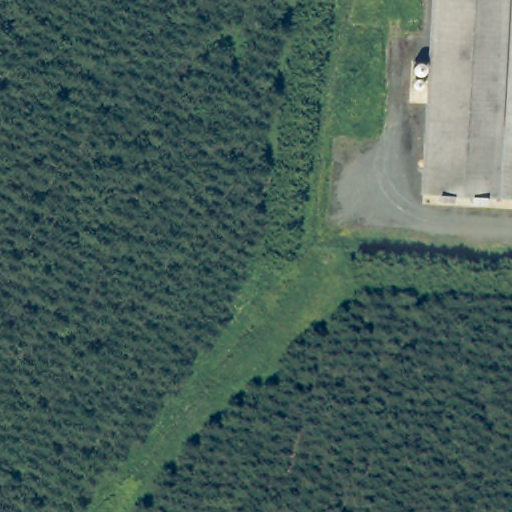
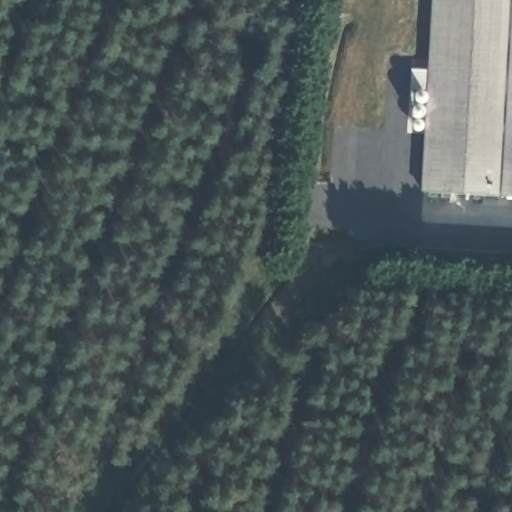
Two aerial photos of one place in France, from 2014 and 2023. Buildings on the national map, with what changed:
unchanged [(493,194),(493,199),(480,198),(481,193),(462,192),(461,197),(448,196),(449,191),(434,191),(444,0),(512,0),(512,195),(493,194)]

